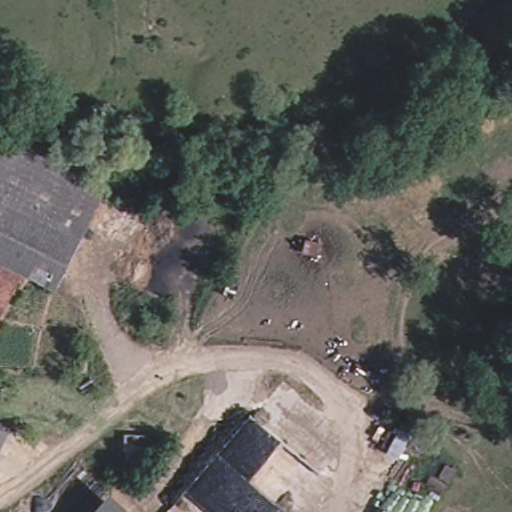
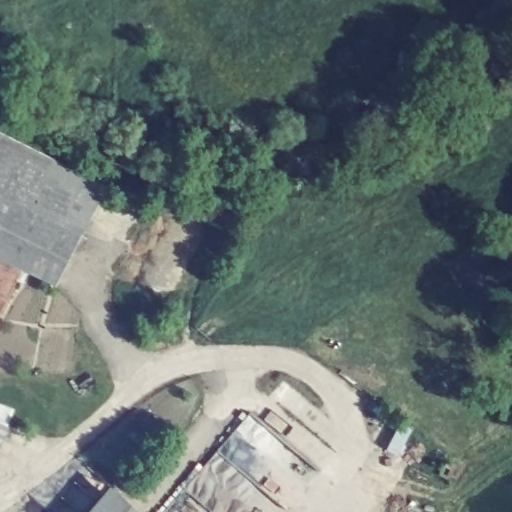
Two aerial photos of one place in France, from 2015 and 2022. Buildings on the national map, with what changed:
unchanged [(58,282),(29,269),(26,272),(0,259),(0,134),(106,186),(58,282)]
unchanged [(31,274),(27,283),(18,280),(0,318),(0,259),(26,272),(31,274)]
unchanged [(153,423),(149,469),(125,467),(128,421),(153,423)]
unchanged [(0,441),(0,425),(5,427),(0,441)]
unchanged [(113,492),(136,512),(96,512),(113,492)]

